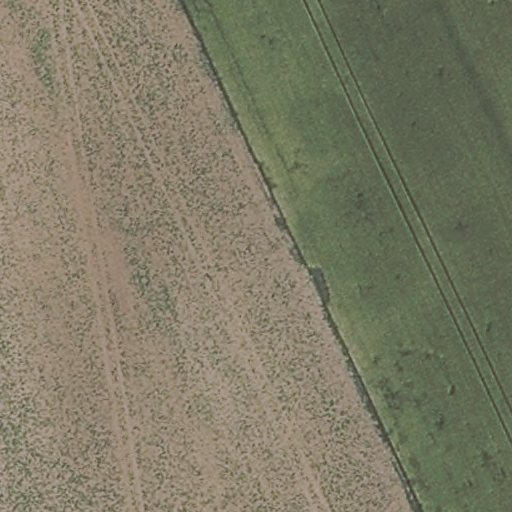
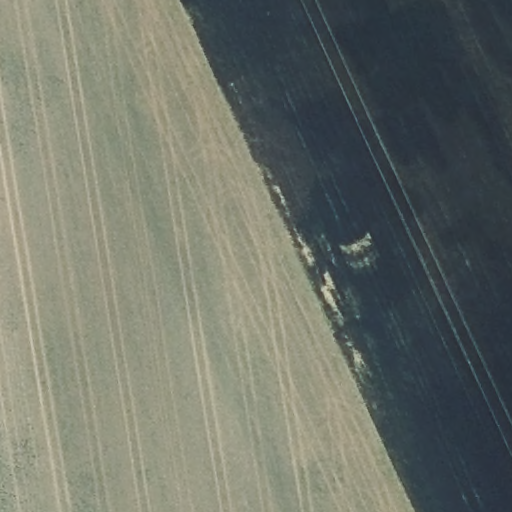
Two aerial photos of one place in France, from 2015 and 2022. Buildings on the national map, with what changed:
[]

